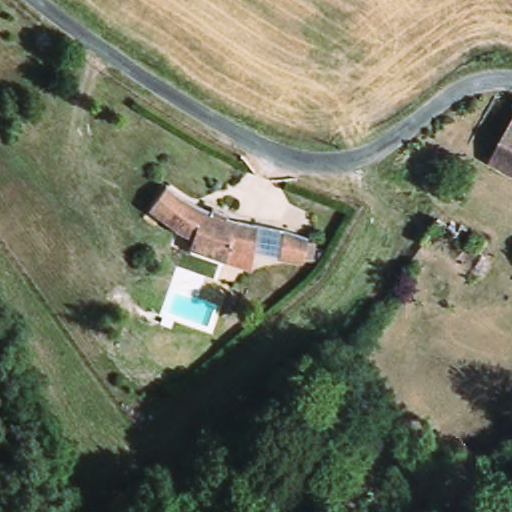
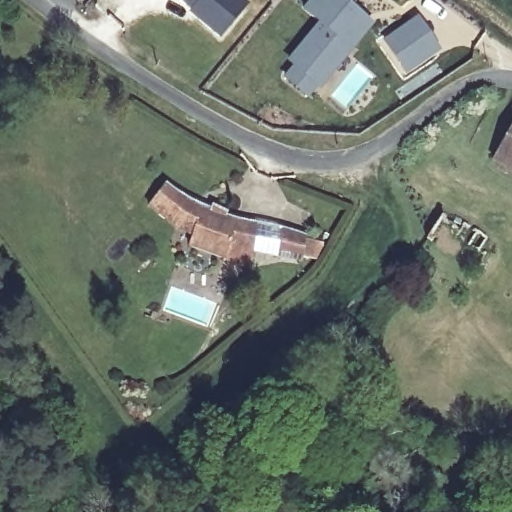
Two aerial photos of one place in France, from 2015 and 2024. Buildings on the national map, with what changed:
new [(219,39),(185,12),(188,9),(178,0),(242,0),(247,4),(219,39)]
new [(315,86),(305,97),(283,77),(292,67),(285,61),(317,24),(301,10),(309,0),(356,0),(350,7),(370,26),(319,88),(315,86)]
new [(403,74),(382,40),(418,17),(440,50),(403,74)]
unchanged [(492,155),(512,121),(512,166),(492,155)]
unchanged [(251,250),(227,249),(222,261),(190,243),(193,227),(152,202),(167,182),(209,207),(213,202),(232,212),(231,219),(255,226),(251,250)]
unchanged [(301,262),(277,255),(283,229),(306,237),(301,262)]

